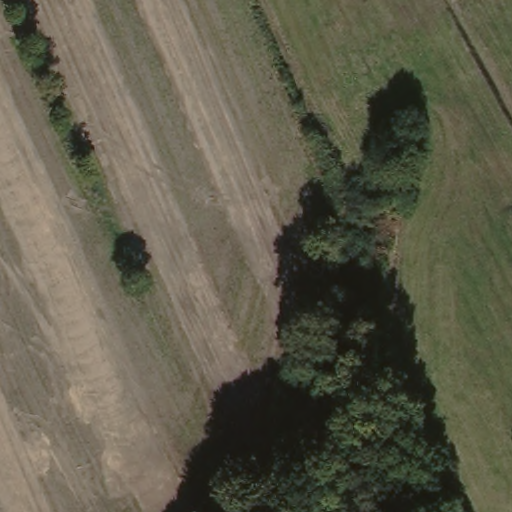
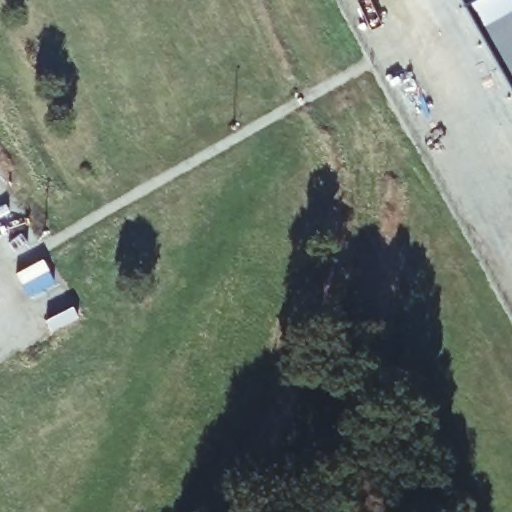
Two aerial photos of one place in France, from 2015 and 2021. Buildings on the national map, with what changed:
new [(512,0),(512,99),(456,0),(512,0)]

